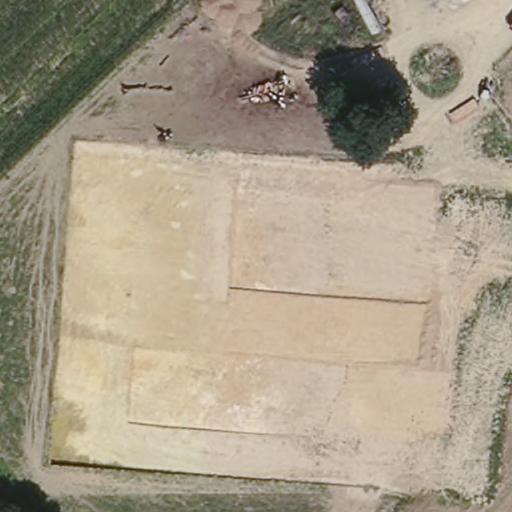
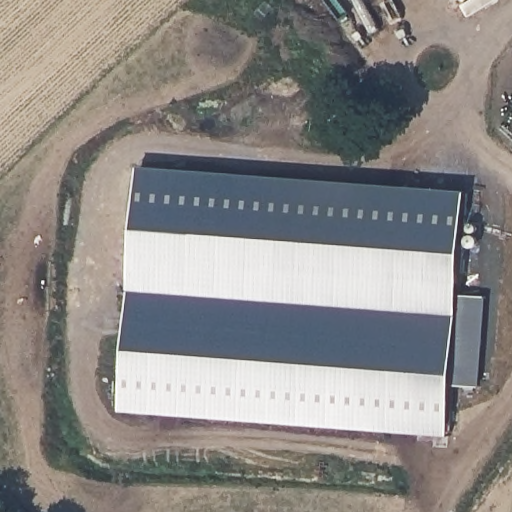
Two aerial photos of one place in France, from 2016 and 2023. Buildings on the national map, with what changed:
new [(146,153),(410,180),(406,219),(472,225),(466,290),(458,375),(453,426),(123,397),(146,153)]
new [(410,180),(475,186),(472,225),(406,219),(410,180)]
new [(466,290),(491,292),(483,377),(458,375),(466,290)]

